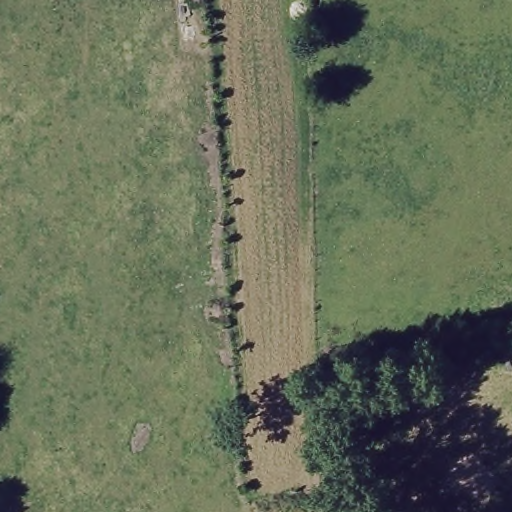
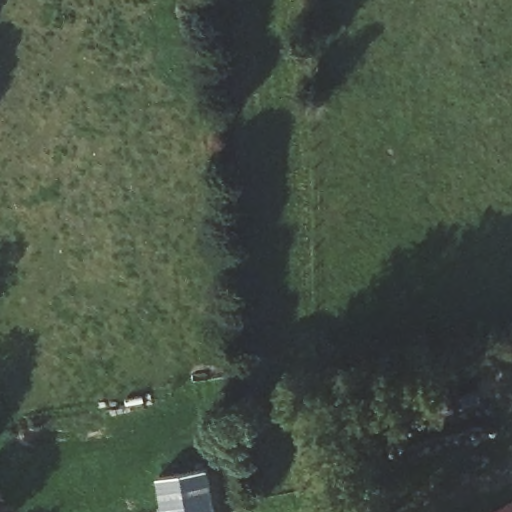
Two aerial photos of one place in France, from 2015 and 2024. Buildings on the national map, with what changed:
new [(156,477),(208,468),(216,512),(162,512),(156,477)]

